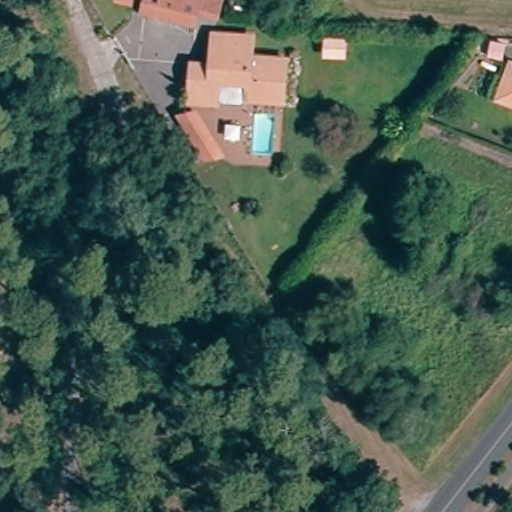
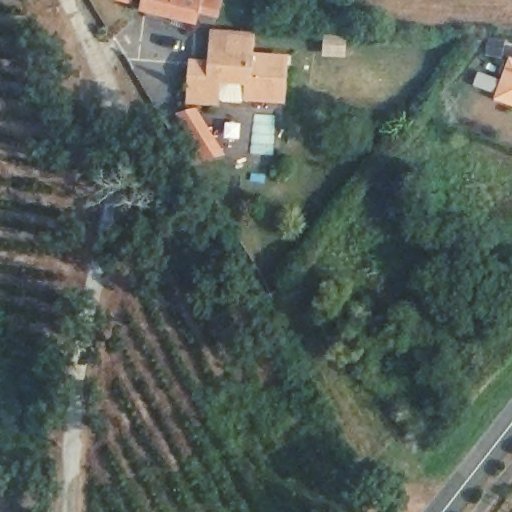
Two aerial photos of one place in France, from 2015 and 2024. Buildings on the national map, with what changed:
unchanged [(214,16),(194,11),(191,25),(134,11),(136,0),(216,0),(214,16)]
unchanged [(189,102),(189,101),(190,90),(193,64),(207,65),(210,32),(254,37),(252,56),(252,55),(248,96),(233,95),(232,106),(189,102)]
unchanged [(280,60),(275,99),(248,96),(252,56),(280,60)]
unchanged [(512,82),(512,93),(507,90),(512,82)]

